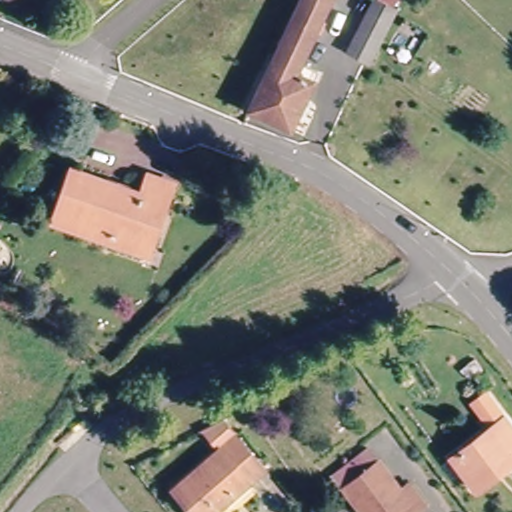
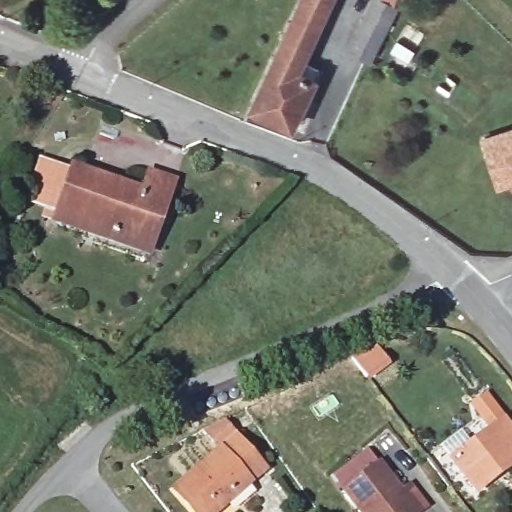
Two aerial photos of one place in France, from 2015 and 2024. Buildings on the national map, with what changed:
unchanged [(287,68),(263,55),(289,0),(320,0),(292,58),(287,68)]
unchanged [(365,23),(376,2),(396,13),(386,34),(369,66),(348,56),(365,23)]
unchanged [(263,55),(287,68),(292,58),(308,66),(281,123),(241,104),(263,55)]
new [(511,183),(496,189),(480,137),(512,128),(512,185),(511,183)]
unchanged [(145,253),(54,219),(69,175),(140,200),(145,181),(166,189),(145,253)]
unchanged [(512,432),(512,469),(476,495),(453,464),(493,434),(475,409),(488,399),(512,432)]
unchanged [(223,512),(186,512),(174,497),(219,458),(201,439),(221,428),(262,478),(223,512)]
unchanged [(377,461),(400,490),(408,483),(425,505),(418,512),(361,512),(343,489),(377,461)]

